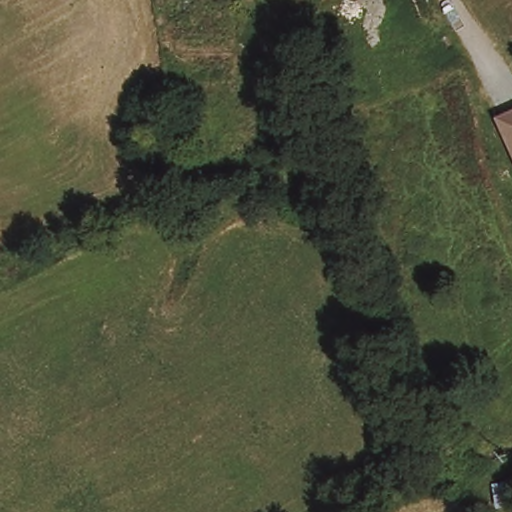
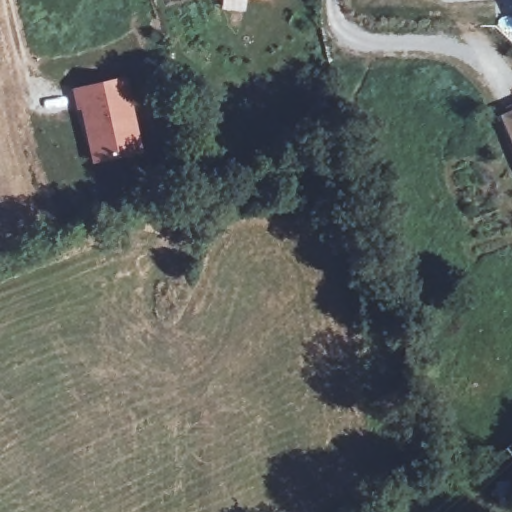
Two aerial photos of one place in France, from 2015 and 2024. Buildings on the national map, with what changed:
new [(81,109),(78,110),(73,90),(129,77),(144,152),(93,162),(81,109)]
unchanged [(510,113),(512,112),(512,117),(510,113)]

